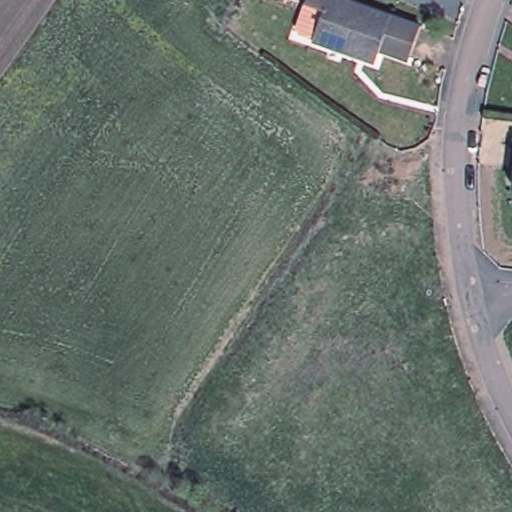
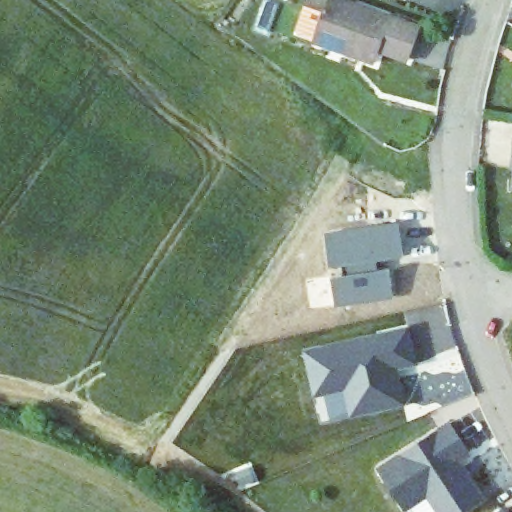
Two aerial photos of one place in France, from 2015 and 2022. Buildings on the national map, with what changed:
unchanged [(312,40),(323,11),(305,4),(306,0),(343,0),(391,16),(380,50),(375,62),(312,40)]
unchanged [(420,26),(409,60),(380,50),(391,16),(420,26)]
new [(399,223),(403,259),(377,262),(379,272),(389,270),(392,300),(335,308),(331,279),(342,278),(342,268),(329,269),(325,234),(399,223)]
new [(405,403),(352,415),(346,388),(316,395),(306,351),(409,328),(417,363),(396,367),(399,378),(405,403)]
new [(470,454),(455,463),(457,469),(462,466),(484,500),(466,512),(439,512),(428,495),(405,509),(380,468),(450,423),(470,454)]
new [(499,512),(502,510),(503,512),(499,512)]

